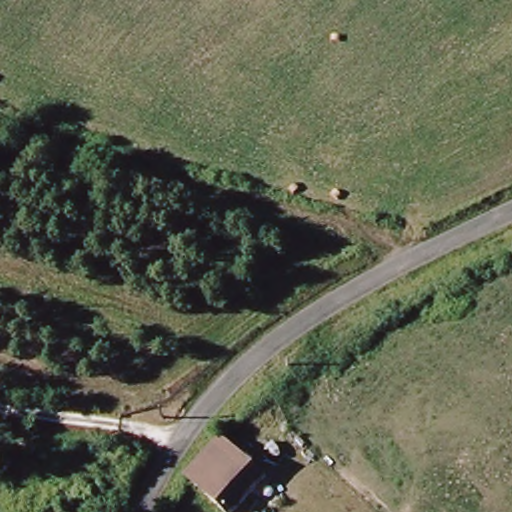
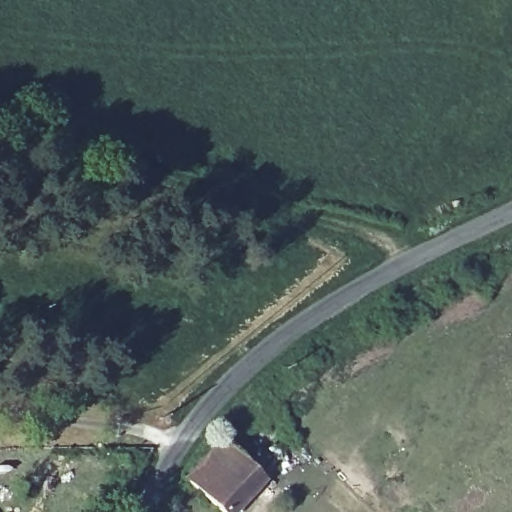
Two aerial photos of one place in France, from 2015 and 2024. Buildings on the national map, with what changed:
unchanged [(268,477),(243,512),(229,512),(187,482),(217,438),(268,477)]

